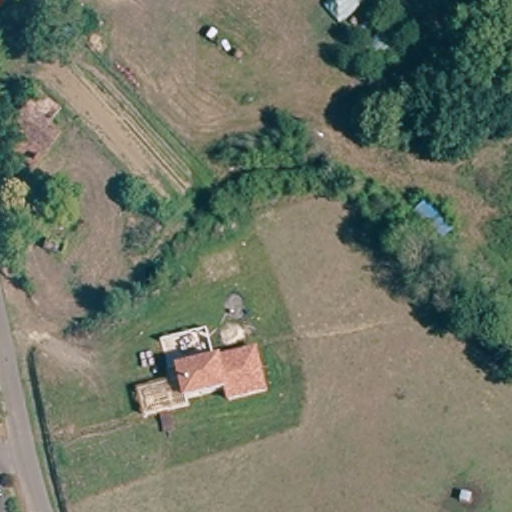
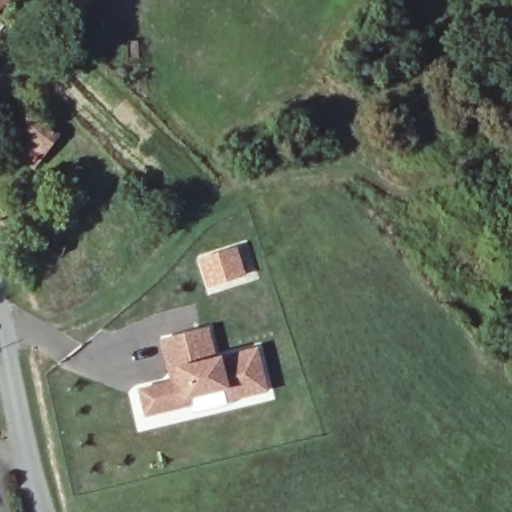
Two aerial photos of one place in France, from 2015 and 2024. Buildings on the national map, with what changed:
unchanged [(0,11),(0,0),(9,0),(0,11)]
unchanged [(382,78),(360,58),(403,17),(426,34),(382,78)]
unchanged [(48,156),(11,129),(45,84),(69,101),(64,110),(76,119),(70,128),(48,156)]
new [(198,258),(236,246),(246,276),(207,288),(198,258)]
unchanged [(136,384),(168,377),(159,338),(206,327),(213,356),(258,350),(268,390),(228,401),(224,389),(186,398),(187,404),(143,416),(136,384)]

